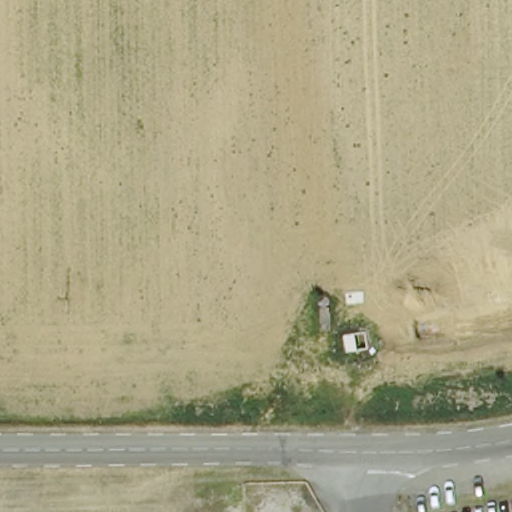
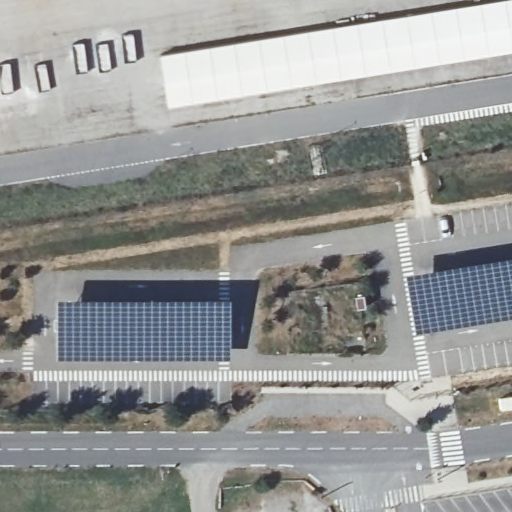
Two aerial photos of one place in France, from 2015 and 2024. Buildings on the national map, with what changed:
new [(512,0),(512,52),(170,108),(161,54),(499,0),(512,0)]
new [(417,334),(406,272),(512,256),(512,318),(417,334)]
new [(58,359),(55,298),(231,299),(231,358),(58,359)]

